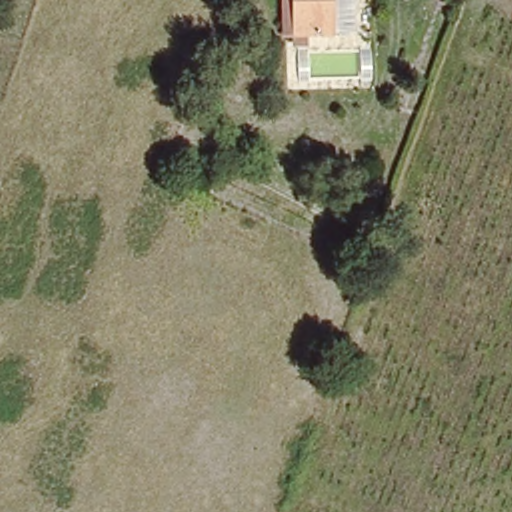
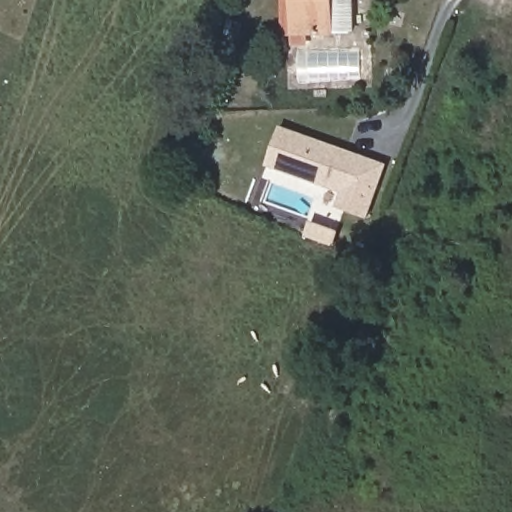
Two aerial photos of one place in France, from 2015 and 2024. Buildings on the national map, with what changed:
unchanged [(329,32),(294,32),(294,0),(329,0),(329,32)]
new [(386,163),(366,218),(334,207),(339,192),(265,165),(279,125),(386,163)]
new [(303,236),(309,220),(339,230),(333,247),(303,236)]

